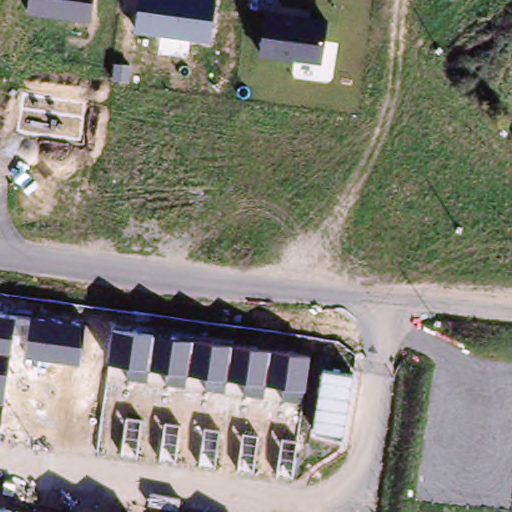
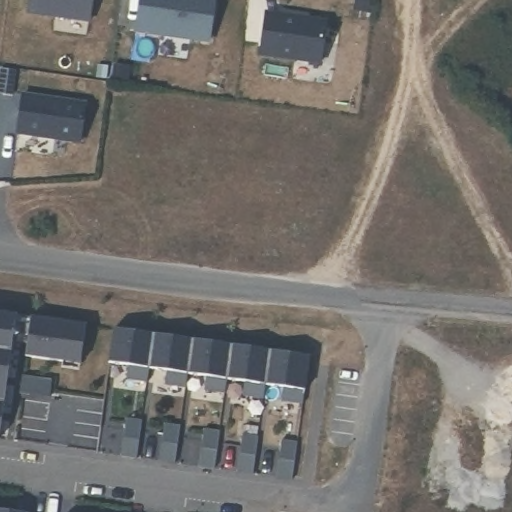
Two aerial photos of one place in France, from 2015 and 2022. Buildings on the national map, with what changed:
unchanged [(31,0),(93,0),(90,22),(29,14),(31,0)]
unchanged [(140,0),(215,0),(209,43),(136,32),(140,0)]
unchanged [(261,56),(266,11),(328,21),(321,64),(261,56)]
new [(87,101),(82,142),(16,133),(21,93),(87,101)]
unchanged [(79,363),(26,356),(28,342),(13,340),(0,432),(0,312),(84,325),(79,363)]
unchanged [(115,330),(309,357),(303,403),(281,401),(282,388),(264,385),(263,398),(243,396),(243,382),(226,380),(224,392),(204,390),(204,377),(186,375),(186,387),(166,385),(165,371),(148,368),(147,382),(126,379),(128,364),(109,361),(115,330)]

